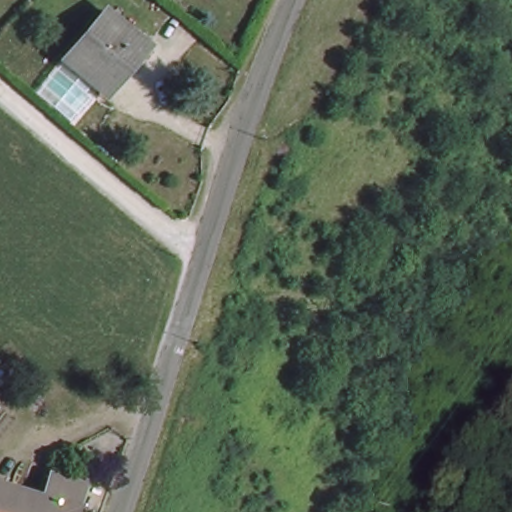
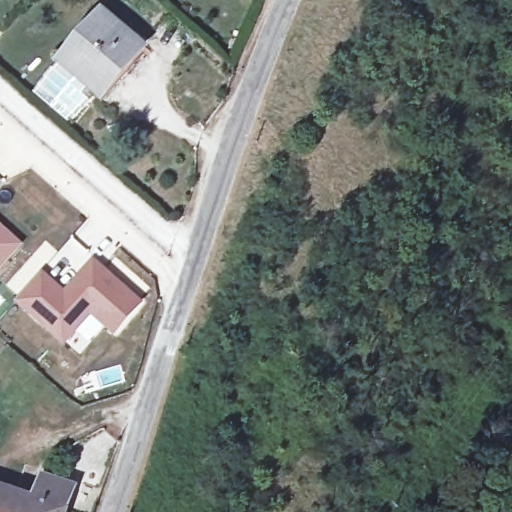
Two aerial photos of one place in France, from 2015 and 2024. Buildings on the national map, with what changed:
unchanged [(137,42),(103,97),(60,67),(93,13),(137,42)]
new [(0,269),(0,221),(24,243),(0,269)]
new [(43,268),(65,286),(93,256),(145,300),(114,335),(92,316),(64,345),(13,301),(43,268)]
unchanged [(44,476),(77,486),(67,512),(4,512),(10,494),(34,501),(44,476)]
unchanged [(4,512),(0,512),(0,491),(10,494),(4,512)]

